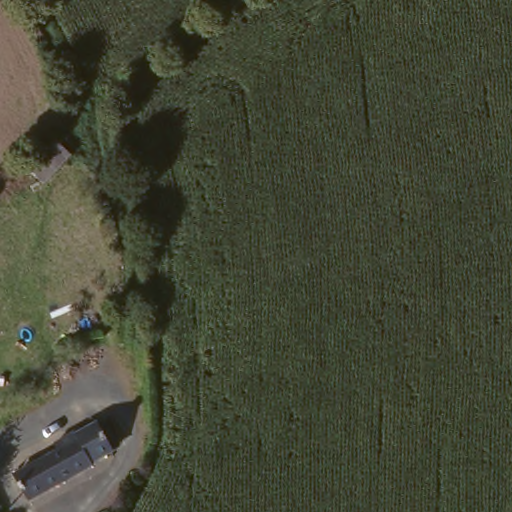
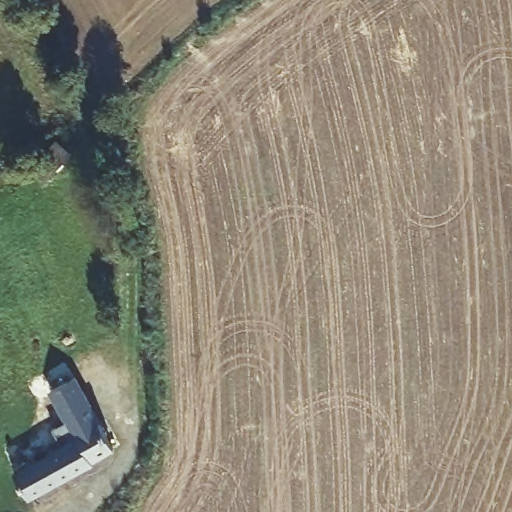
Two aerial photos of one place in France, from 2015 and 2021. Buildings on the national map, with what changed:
unchanged [(40,179),(34,162),(59,139),(73,153),(40,179)]
new [(54,431),(66,424),(49,393),(74,378),(102,428),(85,437),(82,432),(59,443),(54,431)]
unchanged [(59,443),(82,432),(85,437),(106,427),(113,443),(94,454),(97,458),(27,491),(13,465),(59,443)]

